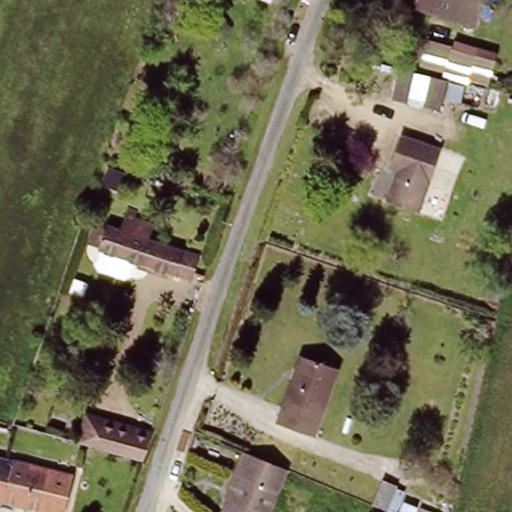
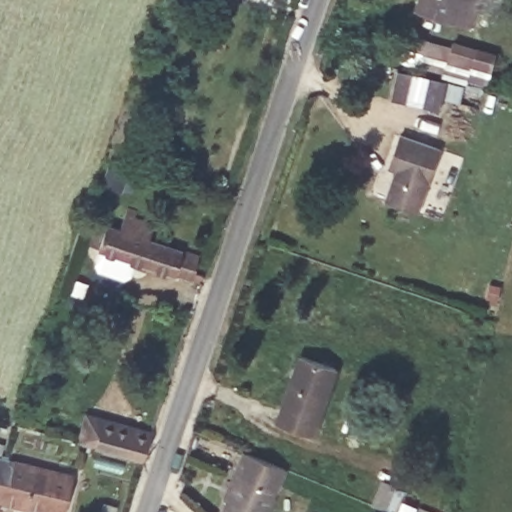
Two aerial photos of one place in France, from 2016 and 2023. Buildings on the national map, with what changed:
unchanged [(412,10),(415,0),(483,0),(474,31),(412,10)]
unchanged [(474,54),(475,50),(497,56),(487,86),(417,67),(425,40),(474,54)]
unchanged [(401,141),(439,152),(420,212),(387,202),(398,164),(395,162),(401,141)]
unchanged [(99,251),(107,226),(120,230),(127,207),(136,210),(133,217),(155,224),(148,241),(200,258),(192,283),(99,251)]
unchanged [(301,359),(337,370),(313,439),(278,427),(301,359)]
unchanged [(100,420),(150,433),(142,455),(92,441),(100,420)]
unchanged [(269,512),(227,512),(230,503),(223,500),(240,453),(247,456),(285,472),(269,512)]
unchanged [(68,512),(41,512),(3,502),(0,501),(0,457),(2,458),(77,476),(68,512)]

